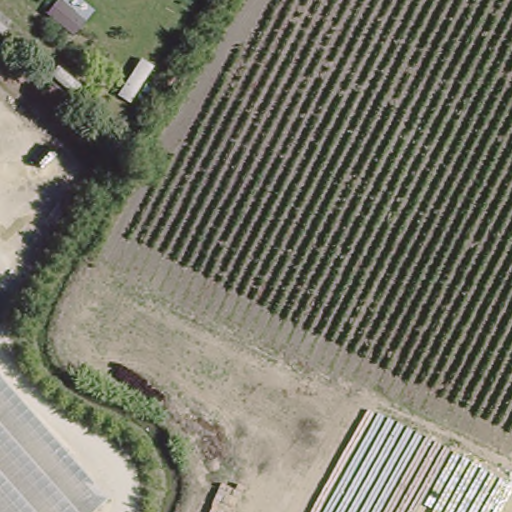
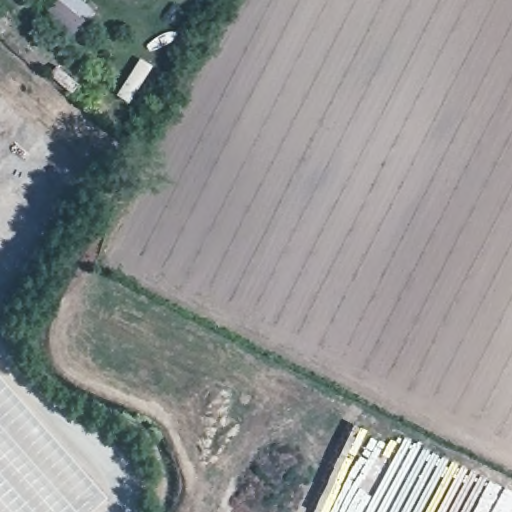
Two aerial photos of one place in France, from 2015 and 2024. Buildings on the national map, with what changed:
unchanged [(0,512),(0,382),(105,505),(97,512),(0,512)]

